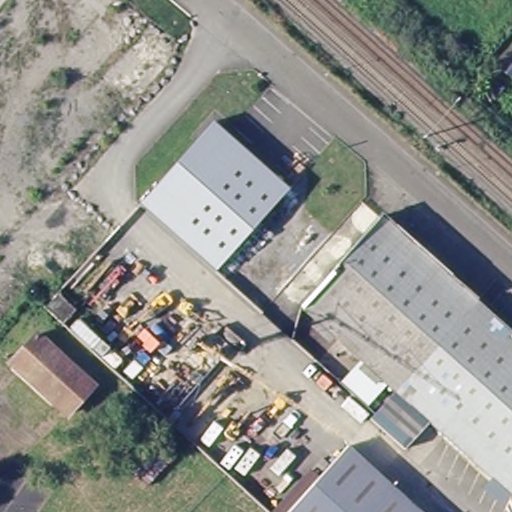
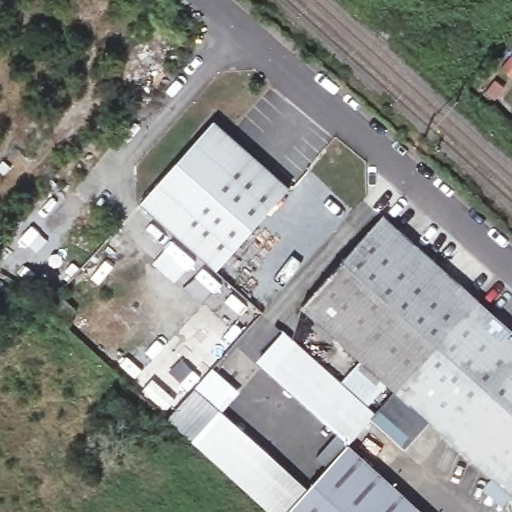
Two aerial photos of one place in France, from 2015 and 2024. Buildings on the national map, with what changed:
unchanged [(508,52),(512,48),(512,71),(503,63),(511,54),(508,52)]
unchanged [(473,82),(487,90),(490,86),(503,98),(492,110),(467,89),(473,82)]
unchanged [(161,183),(214,122),(288,187),(235,249),(220,266),(185,237),(145,202),(161,183)]
unchanged [(407,387),(401,393),(306,308),(386,220),(481,305),(407,387)]
unchanged [(36,308),(49,293),(68,310),(55,325),(36,308)]
unchanged [(512,491),(429,418),(401,393),(407,387),(481,305),(512,332),(512,491)]
demolished [(36,337),(96,388),(75,414),(14,363),(36,337)]
new [(346,444),(269,373),(296,344),(374,413),(346,444)]
new [(362,358),(389,382),(367,407),(340,383),(362,358)]
new [(193,446),(166,421),(212,369),(240,393),(221,413),(193,446)]
unchanged [(429,418),(400,452),(371,427),(401,393),(429,418)]
new [(291,512),(265,512),(193,446),(221,413),(309,491),(291,512)]
demolished [(154,439),(172,456),(148,482),(130,465),(154,439)]
unchanged [(433,512),(291,512),(354,441),(433,512)]

